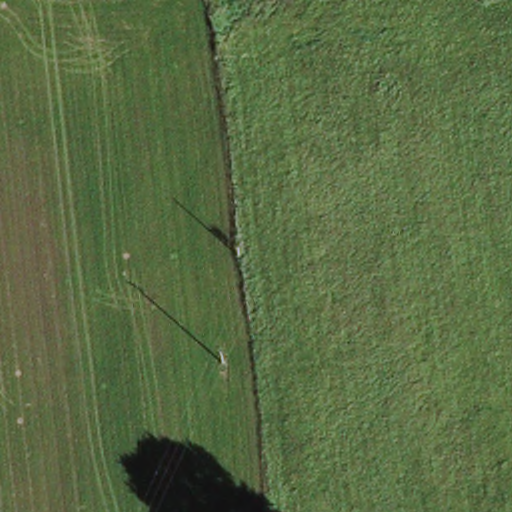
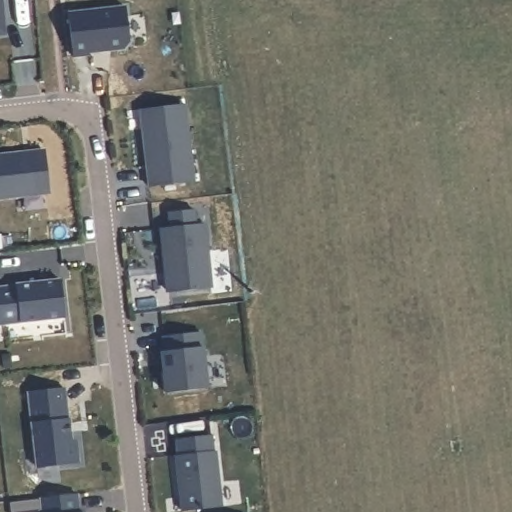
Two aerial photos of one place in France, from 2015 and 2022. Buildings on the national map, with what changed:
new [(123,6),(127,40),(123,47),(87,51),(87,54),(71,55),(66,13),(123,6)]
new [(2,34),(0,34),(0,16),(2,34)]
new [(141,125),(139,109),(182,104),(191,181),(146,186),(139,126),(141,125)]
new [(42,146),(47,190),(0,196),(0,151),(42,146)]
new [(168,227),(166,212),(190,209),(192,225),(202,224),(209,289),(176,293),(172,265),(163,267),(158,229),(168,227)]
new [(14,285),(13,284),(59,278),(64,315),(0,323),(0,287),(14,285)]
new [(162,346),(161,336),(198,332),(204,386),(164,391),(159,346),(162,346)]
new [(61,387),(65,418),(66,418),(69,441),(74,440),(76,462),(35,467),(26,391),(61,387)]
new [(176,454),(174,438),(205,435),(207,450),(211,450),(217,506),(180,510),(174,455),(176,454)]
new [(77,512),(41,512),(40,497),(75,493),(77,512)]

